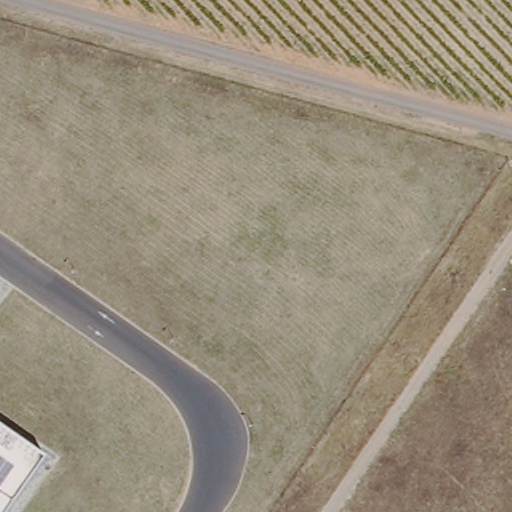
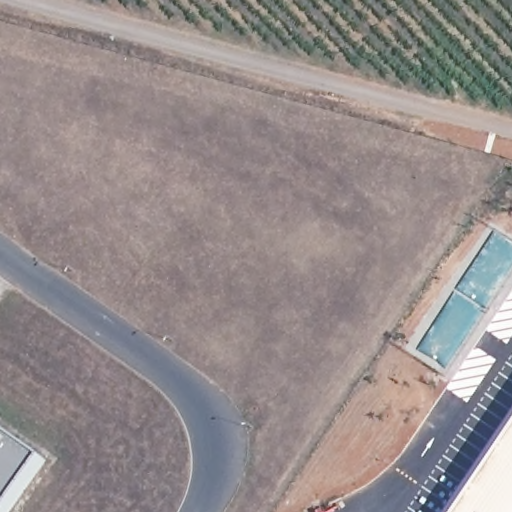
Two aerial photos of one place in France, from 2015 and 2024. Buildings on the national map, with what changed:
unchanged [(48,459),(10,512),(0,512),(0,425),(48,459)]
new [(512,512),(456,512),(512,429),(512,512)]

